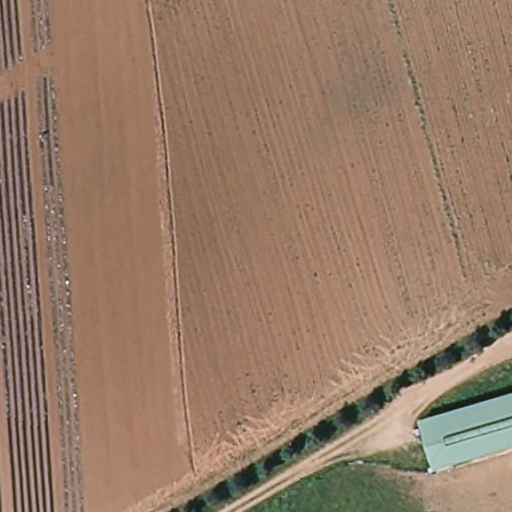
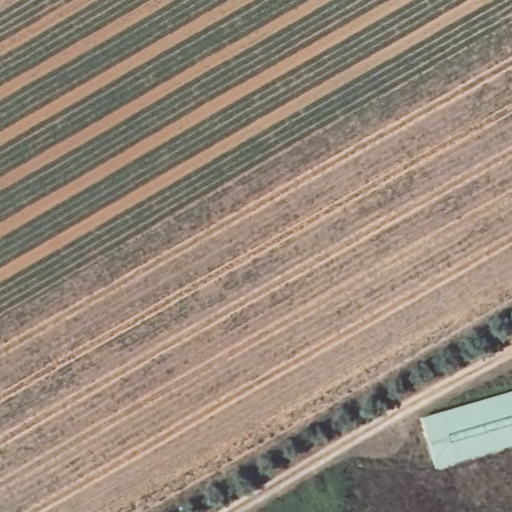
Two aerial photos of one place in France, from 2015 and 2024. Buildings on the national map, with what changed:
unchanged [(512,385),(512,443),(438,463),(421,410),(512,385)]

